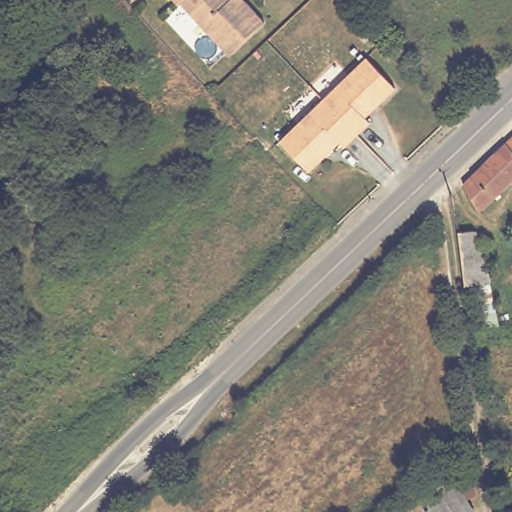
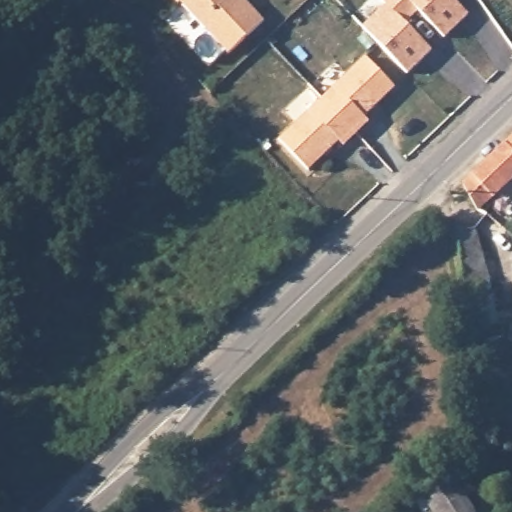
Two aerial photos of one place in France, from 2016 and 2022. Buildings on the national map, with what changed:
unchanged [(183,4),(180,7),(174,0),(247,0),(267,22),(231,56),(183,4)]
new [(385,5),(381,0),(457,0),(470,13),(444,39),(418,12),(406,24),(432,51),(407,75),(362,28),(385,5)]
unchanged [(363,57),(392,87),(362,117),(367,122),(342,147),(337,142),(307,172),(279,141),(363,57)]
unchanged [(461,175),(464,172),(512,126),(512,166),(476,202),(461,175)]
unchanged [(470,285),(461,286),(456,287),(450,234),(454,234),(463,232),(467,232),(475,283),(470,285)]
unchanged [(435,512),(422,493),(450,475),(474,512),(435,512)]

